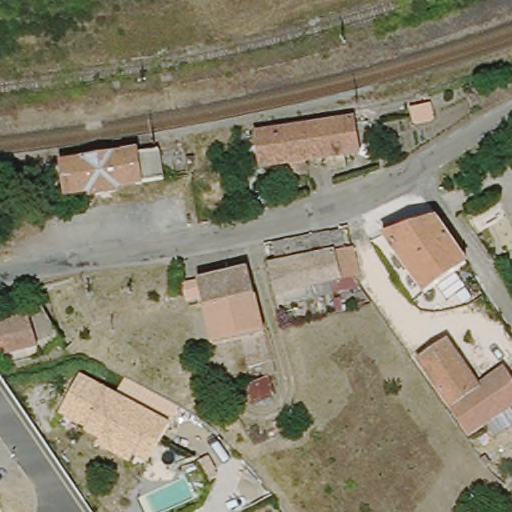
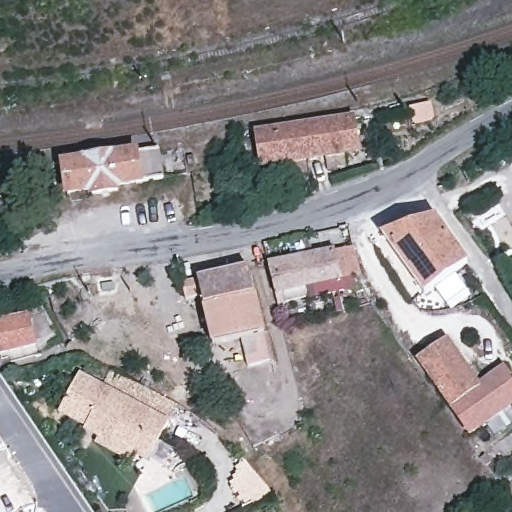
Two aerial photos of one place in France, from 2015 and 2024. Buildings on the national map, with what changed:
unchanged [(434,116),(416,119),(413,104),(432,100),(434,116)]
unchanged [(307,158),(302,125),(356,116),(360,150),(346,152),(347,164),(330,167),(328,154),(307,158)]
unchanged [(307,158),(309,171),(294,173),(292,160),(267,164),(262,132),(302,125),(307,158)]
unchanged [(95,204),(95,199),(72,201),(70,183),(53,185),(52,173),(69,171),(164,155),(168,186),(120,195),(120,200),(95,204)]
unchanged [(219,177),(223,211),(207,213),(202,179),(219,177)]
unchanged [(392,240),(390,236),(440,219),(470,267),(427,296),(392,240)]
unchanged [(362,281),(357,283),(277,299),(275,271),(355,252),(362,281)]
unchanged [(261,371),(259,361),(245,363),(240,335),(210,341),(202,294),(185,297),(183,279),(252,265),(265,329),(267,328),(273,359),(274,369),(261,371)]
unchanged [(112,295),(115,306),(104,309),(101,298),(112,295)]
unchanged [(0,337),(0,328),(35,319),(45,347),(7,359),(0,337)]
unchanged [(483,459),(470,438),(416,360),(445,341),(477,389),(504,373),(512,386),(512,408),(482,429),(495,450),(483,459)]
unchanged [(137,454),(132,462),(112,451),(99,443),(102,437),(88,429),(90,426),(63,411),(84,374),(172,424),(161,443),(150,462),(137,454)]

